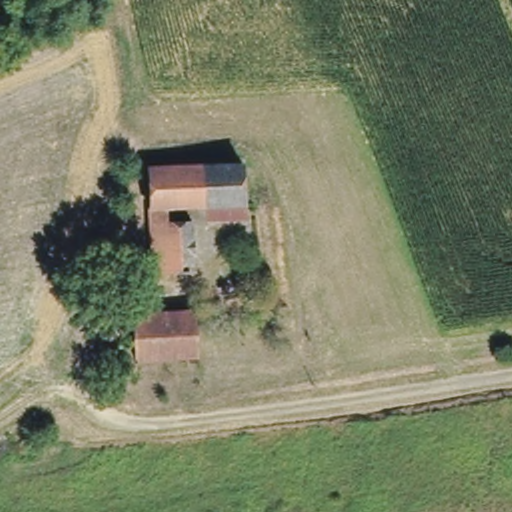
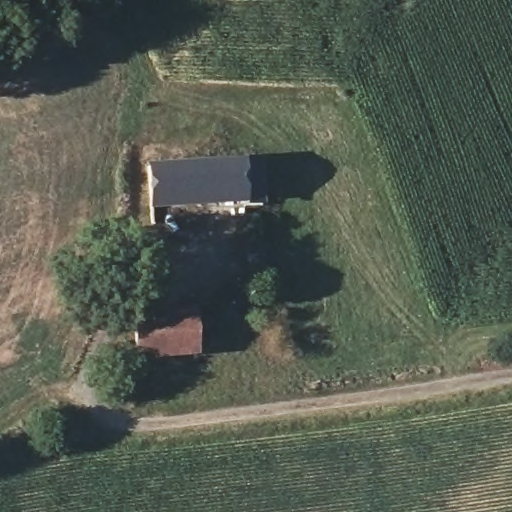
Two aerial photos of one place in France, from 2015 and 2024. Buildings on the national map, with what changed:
unchanged [(242,161),(246,199),(166,203),(150,200),(149,163),(242,161)]
unchanged [(153,219),(167,215),(192,215),(196,265),(159,270),(153,219)]
unchanged [(133,311),(191,304),(194,350),(135,352),(133,346),(133,311)]

